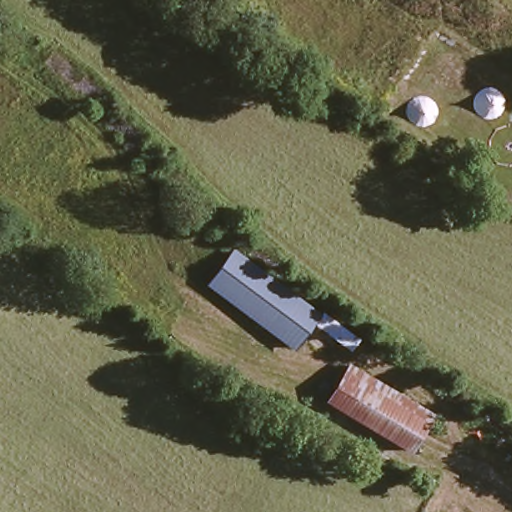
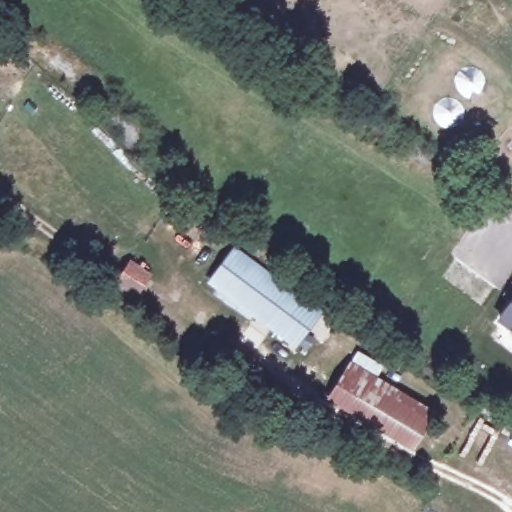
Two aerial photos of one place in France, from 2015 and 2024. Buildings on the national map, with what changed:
unchanged [(241,247),(327,312),(304,345),(217,280),(241,247)]
new [(512,294),(512,333),(494,321),(512,294)]
unchanged [(354,366),(436,416),(414,451),(331,402),(354,366)]

